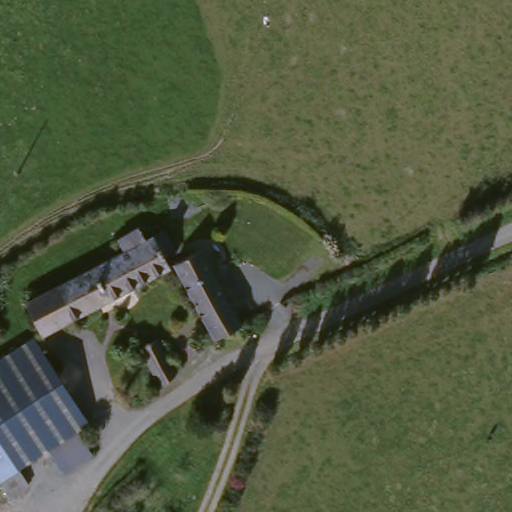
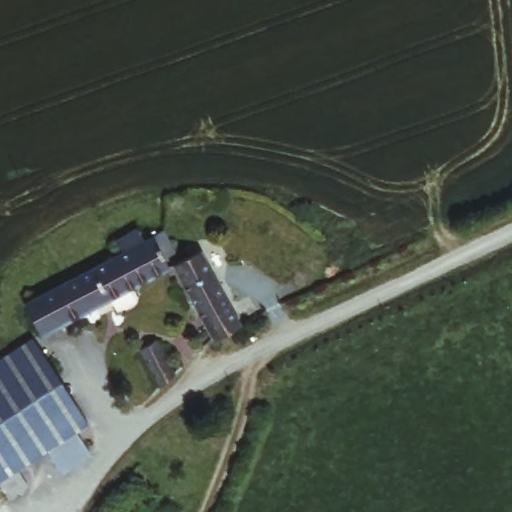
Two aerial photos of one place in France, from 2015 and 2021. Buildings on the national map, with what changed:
unchanged [(93,308),(36,339),(21,307),(116,254),(111,244),(132,231),(139,241),(145,238),(157,231),(169,252),(157,259),(163,269),(93,308)]
unchanged [(192,254),(212,243),(254,318),(232,328),(192,254)]
unchanged [(169,267),(178,261),(192,254),(232,328),(206,340),(169,267)]
unchanged [(135,348),(154,335),(175,369),(156,384),(135,348)]
unchanged [(80,426),(39,452),(11,469),(21,488),(4,499),(0,493),(0,363),(13,355),(31,344),(80,426)]
unchanged [(68,441),(87,457),(62,483),(45,465),(68,441)]

